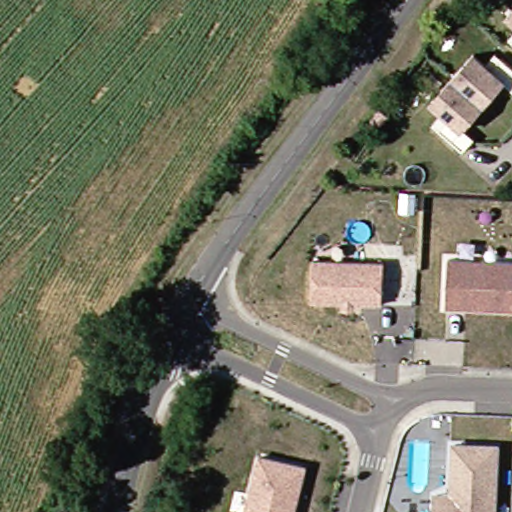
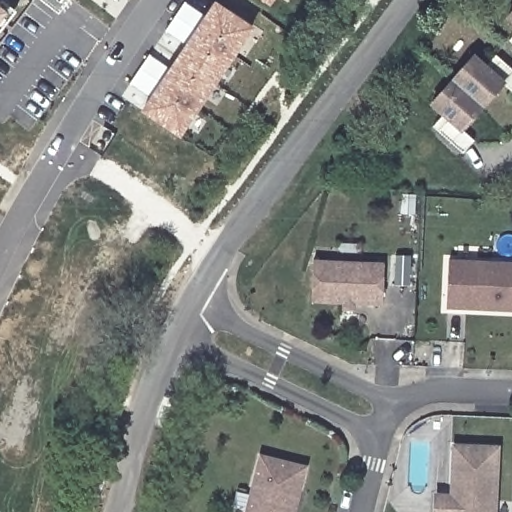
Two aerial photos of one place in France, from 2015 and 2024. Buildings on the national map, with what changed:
new [(273,6),(265,0),(278,0),(273,6)]
new [(257,30),(183,139),(144,111),(217,2),(257,30)]
new [(11,13),(0,28),(0,4),(11,13)]
unchanged [(512,11),(512,13),(511,12),(512,11)]
unchanged [(434,100),(477,51),(488,61),(499,50),(504,55),(512,62),(512,83),(506,79),(465,125),(477,135),(466,148),(441,126),(436,121),(446,110),(434,100)]
unchanged [(366,122),(357,115),(368,101),(377,107),(366,122)]
unchanged [(382,260),(380,302),(310,299),(312,256),(382,260)]
unchanged [(445,309),(447,261),(512,264),(512,312),(480,310),(445,309)]
unchanged [(453,499),(457,499),(459,445),(501,446),(499,512),(440,512),(441,498),(453,499)]
unchanged [(298,488),(296,497),(293,512),(245,512),(259,454),(304,465),(298,488)]

